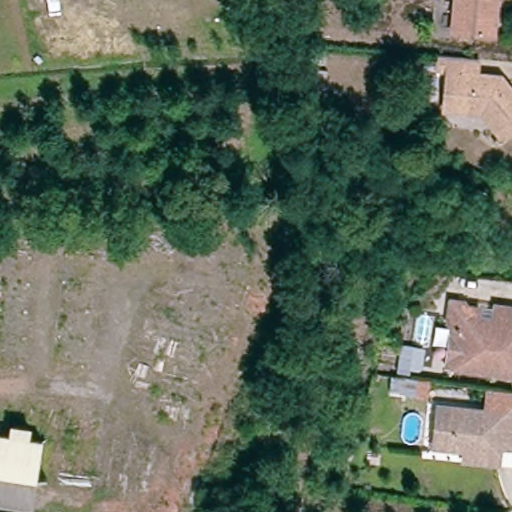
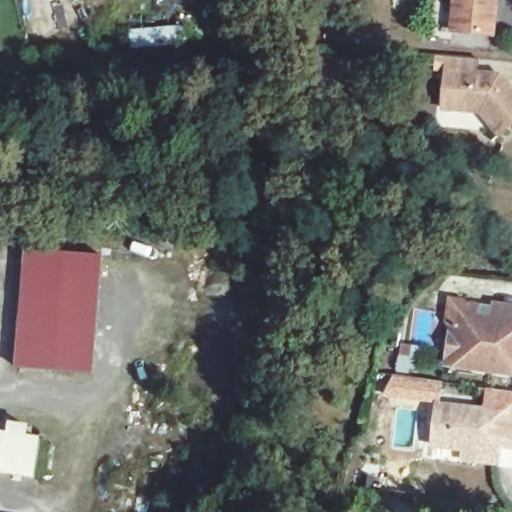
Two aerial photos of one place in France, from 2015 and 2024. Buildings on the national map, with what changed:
unchanged [(488,43),(447,38),(451,0),(493,0),(488,43)]
unchanged [(443,117),(443,115),(447,77),(437,76),(438,62),(440,63),(448,63),(470,65),(478,66),(477,81),(500,84),(512,97),(512,134),(500,144),(478,116),(472,116),(468,119),(444,117),(443,117)]
new [(17,312),(25,245),(102,255),(91,375),(11,368),(17,312)]
unchanged [(447,354),(450,334),(447,330),(449,309),(463,310),(463,314),(477,315),(493,317),(493,313),(512,315),(512,380),(455,374),(448,374),(450,354),(447,354)]
unchanged [(465,450),(434,447),(439,406),(512,414),(512,448),(501,447),(500,454),(498,464),(465,460),(465,450)]
unchanged [(36,432),(30,479),(0,474),(0,425),(36,432)]

